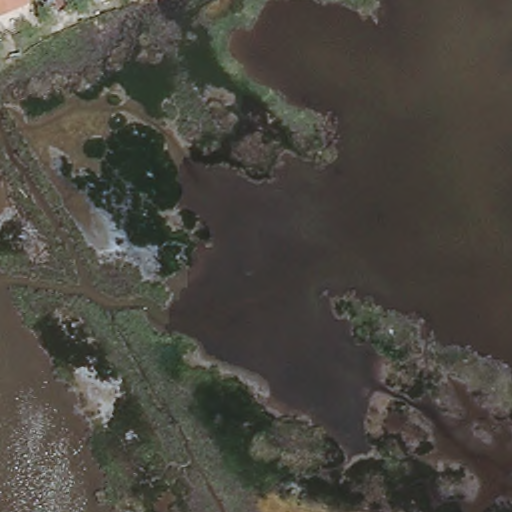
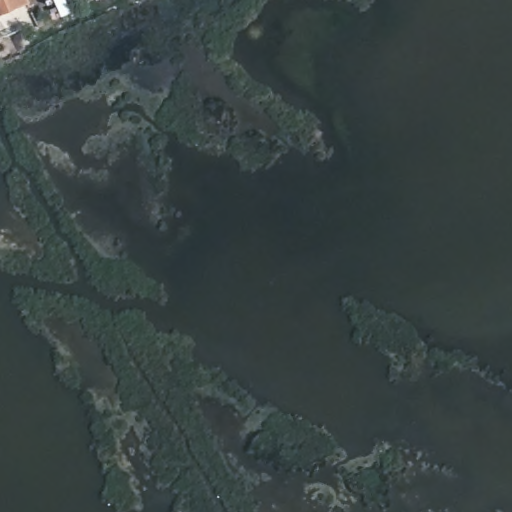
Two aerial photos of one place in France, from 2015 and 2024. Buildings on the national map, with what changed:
unchanged [(0,0),(23,0),(0,10),(0,0)]

